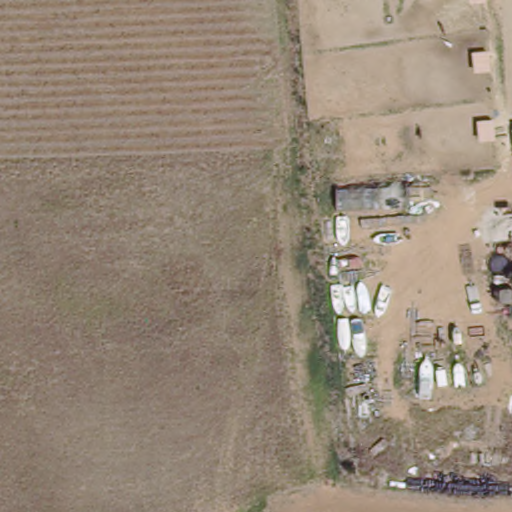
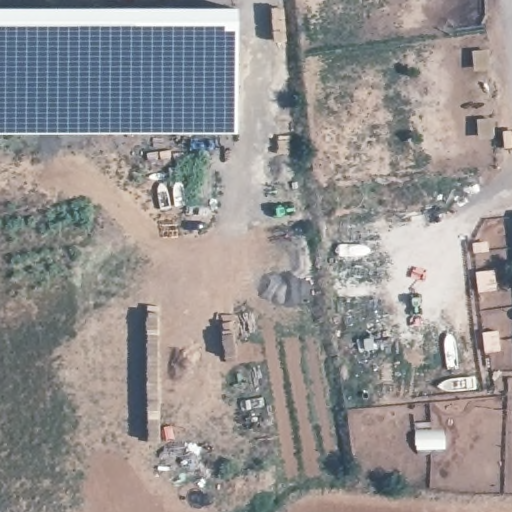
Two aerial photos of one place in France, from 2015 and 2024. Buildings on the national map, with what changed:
new [(236,136),(0,135),(0,9),(239,10),(236,136)]

